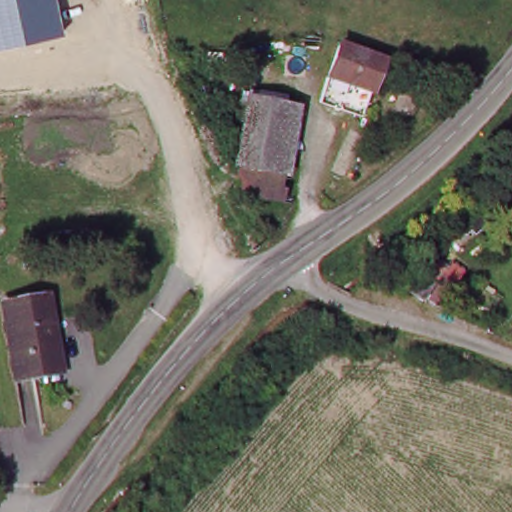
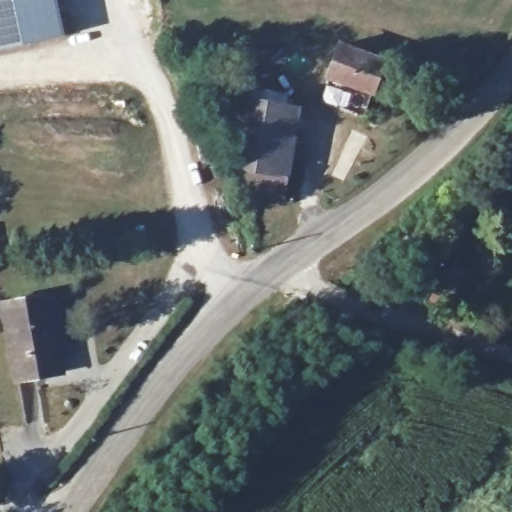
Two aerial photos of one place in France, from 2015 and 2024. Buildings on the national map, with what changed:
unchanged [(62,37),(0,49),(0,0),(55,0),(62,37)]
unchanged [(372,90),(329,72),(340,47),(383,65),(372,90)]
unchanged [(280,103),(294,106),(274,195),(238,186),(258,84),(282,89),(280,103)]
unchanged [(426,274),(443,285),(432,302),(415,291),(426,274)]
unchanged [(62,367),(18,374),(4,301),(49,295),(62,367)]

